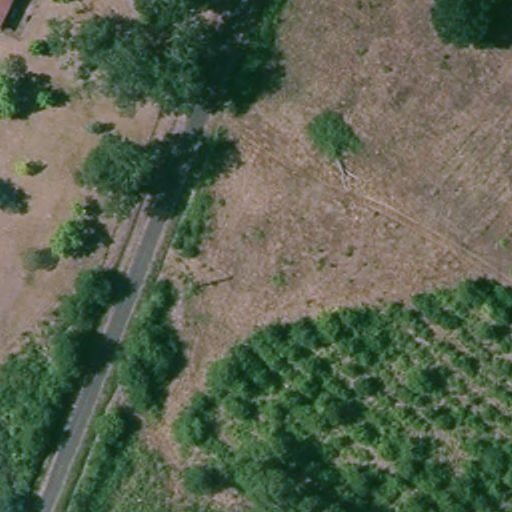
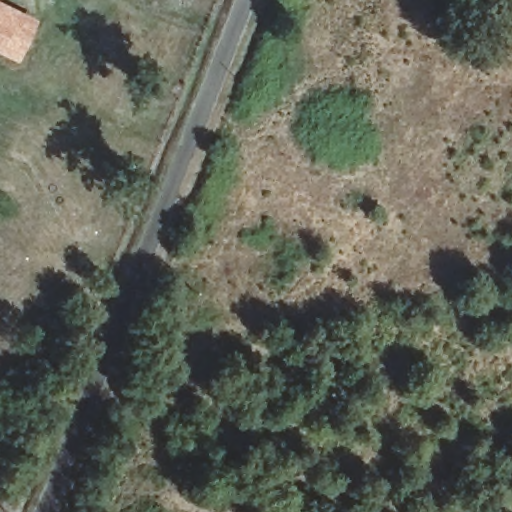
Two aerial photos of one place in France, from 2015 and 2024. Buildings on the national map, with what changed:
demolished [(0,27),(0,0),(11,0),(0,27)]
new [(35,18),(15,60),(0,53),(0,1),(35,18)]

